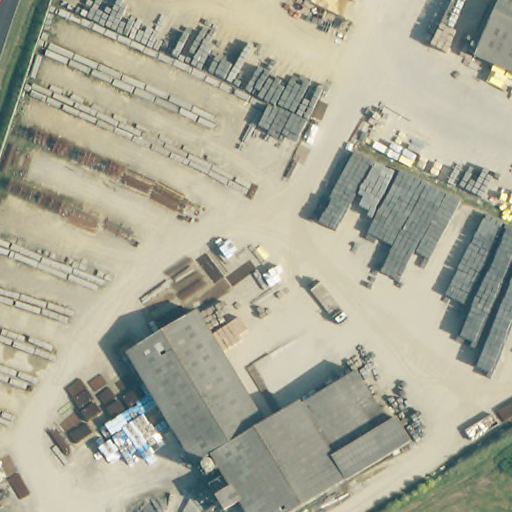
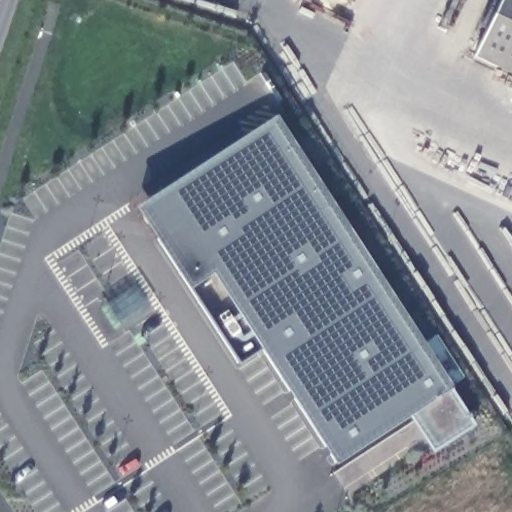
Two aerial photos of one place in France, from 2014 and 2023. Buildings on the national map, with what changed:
unchanged [(512,2),(512,81),(482,68),(512,2)]
new [(134,207),(275,117),(450,389),(475,425),(432,450),(408,415),(335,463),(260,350),(237,364),(134,207)]
demolished [(192,466),(127,354),(197,315),(259,423),(297,402),(300,407),(353,376),(387,430),(398,423),(411,447),(300,512),(242,512),(210,456),(192,466)]

